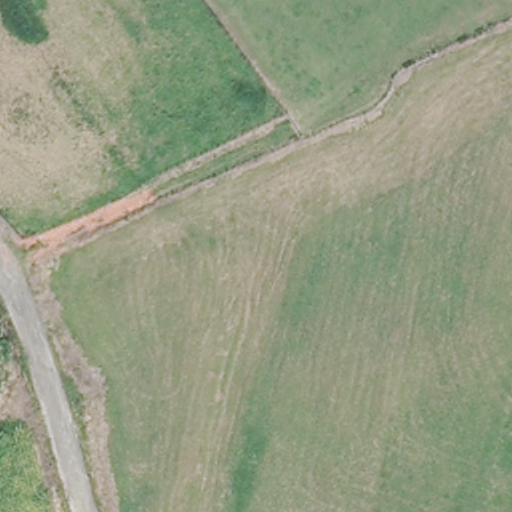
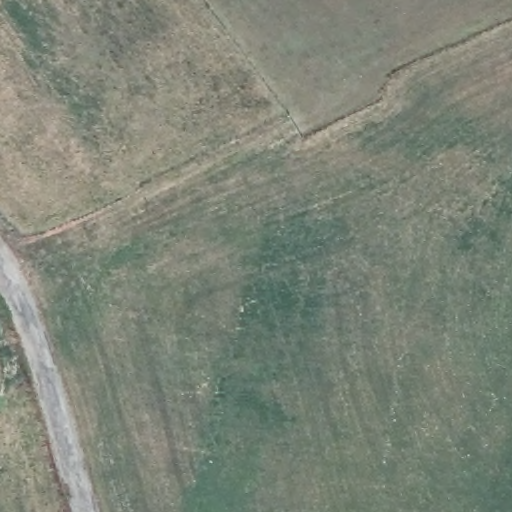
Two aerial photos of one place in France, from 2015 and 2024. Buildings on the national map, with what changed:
[]

